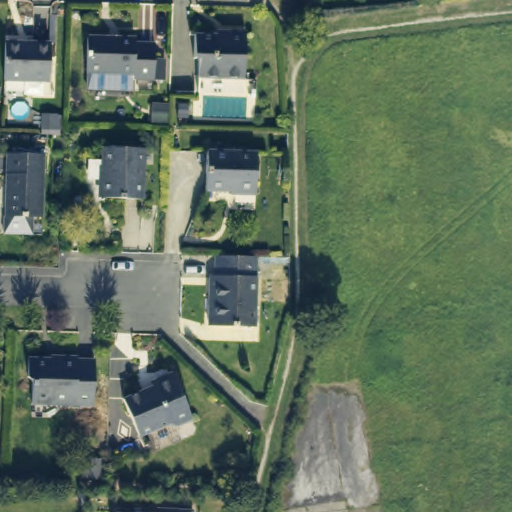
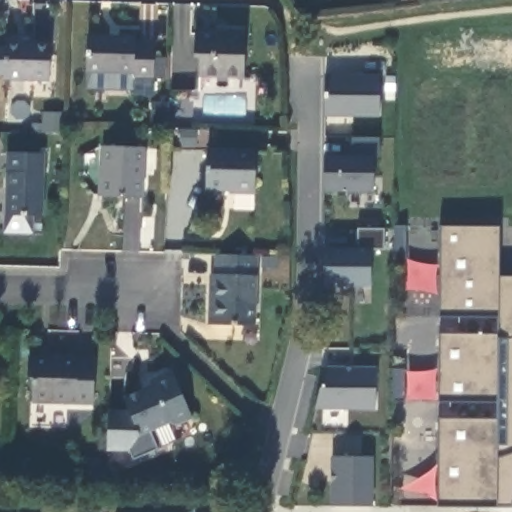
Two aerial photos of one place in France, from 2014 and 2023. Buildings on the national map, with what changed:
unchanged [(244,76),(202,75),(203,58),(196,58),(197,34),(229,35),(229,30),(245,30),(244,76)]
unchanged [(86,66),(87,33),(132,34),(132,40),(153,40),(152,73),(131,72),(132,67),(86,66)]
unchanged [(47,80),(4,79),(5,41),(49,43),(47,80)]
new [(327,76),(382,76),(382,116),(327,116),(327,76)]
new [(322,155),(352,155),(352,138),(380,138),(379,159),(375,159),(374,194),(325,193),(322,155)]
unchanged [(6,223),(7,206),(8,206),(10,143),(46,144),(44,207),(35,206),(35,224),(6,223)]
unchanged [(145,199),(103,196),(106,147),(147,149),(145,199)]
unchanged [(256,194),(235,193),(235,190),(207,190),(208,150),(257,151),(256,194)]
new [(498,228),(498,278),(512,278),(512,509),(440,509),(440,419),(496,418),(496,402),(439,401),(440,335),(497,335),(497,317),(440,318),(441,229),(498,228)]
new [(323,250),(357,249),(357,229),(386,230),(386,250),(372,250),(371,286),(324,287),(323,250)]
unchanged [(256,326),(211,325),(212,287),(217,287),(218,255),(258,255),(256,326)]
unchanged [(34,402),(35,375),(30,375),(30,356),(61,356),(62,355),(80,355),(80,358),(97,358),(96,404),(34,402)]
new [(324,378),(324,368),(377,368),(377,408),(317,408),(324,378)]
unchanged [(194,417),(177,425),(172,423),(142,436),(125,398),(152,386),(153,381),(174,372),(194,417)]
new [(330,458),(372,457),(373,507),(331,508),(330,458)]
unchanged [(162,512),(162,510),(182,510),(182,512),(162,512)]

